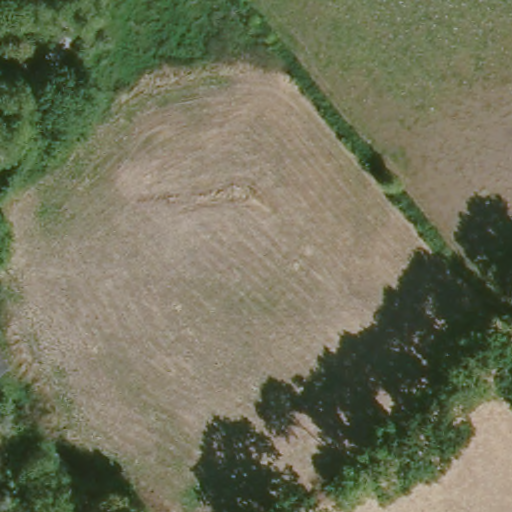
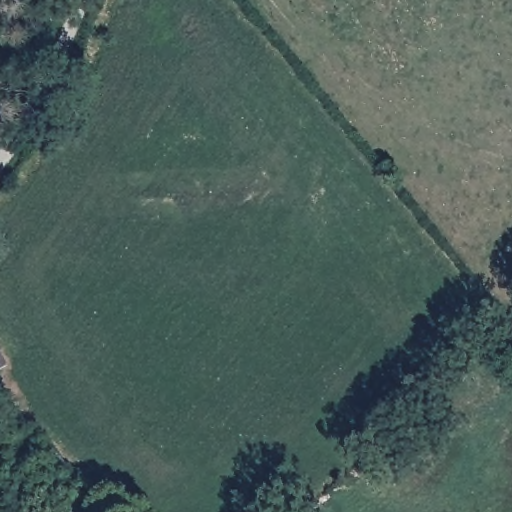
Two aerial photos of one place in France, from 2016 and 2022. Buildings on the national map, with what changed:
unchanged [(13,366),(0,374),(0,343),(13,366)]
unchanged [(75,472),(58,487),(40,465),(44,462),(38,452),(50,441),(75,472)]

